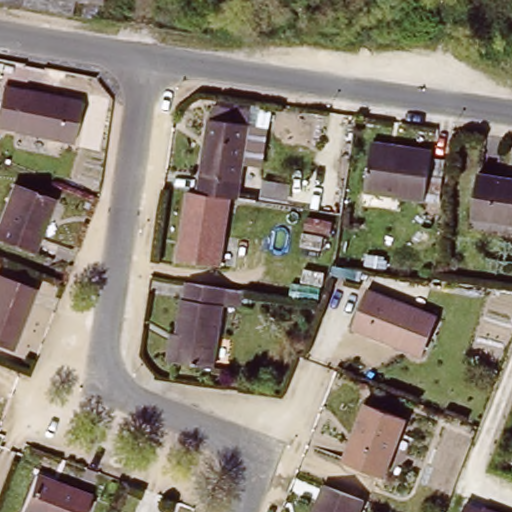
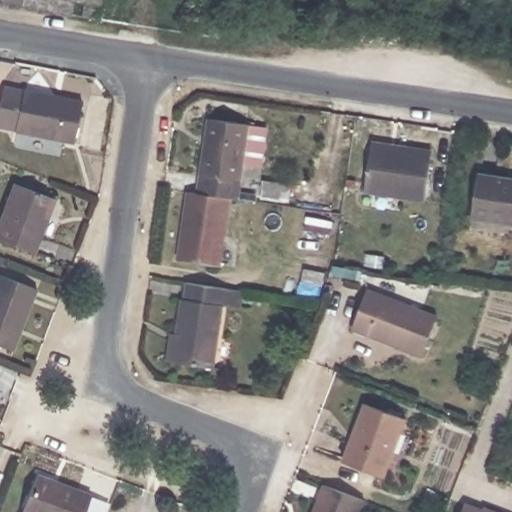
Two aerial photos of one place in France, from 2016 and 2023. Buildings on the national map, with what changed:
unchanged [(0,1),(0,0),(72,0),(68,14),(0,1)]
unchanged [(77,0),(97,0),(96,4),(77,0)]
unchanged [(78,99),(69,140),(12,129),(20,87),(78,99)]
unchanged [(233,197),(226,195),(193,190),(204,115),(245,122),(233,197)]
unchanged [(364,188),(371,146),(371,141),(402,145),(431,149),(423,197),(364,188)]
unchanged [(512,221),(468,215),(474,173),(512,178),(512,221)]
unchanged [(52,198),(31,251),(0,239),(0,217),(13,183),(52,198)]
unchanged [(215,264),(175,257),(186,189),(193,190),(226,195),(215,264)]
unchanged [(9,348),(0,344),(0,274),(33,287),(9,348)]
unchanged [(174,333),(179,298),(181,298),(184,280),(236,289),(234,304),(219,303),(208,366),(164,359),(167,339),(168,332),(174,333)]
unchanged [(434,315),(419,354),(349,328),(363,289),(434,315)]
unchanged [(403,413),(381,471),(341,455),(363,397),(403,413)]
unchanged [(86,493),(79,512),(17,512),(32,472),(86,493)]
unchanged [(362,499),(357,512),(311,512),(322,483),(362,499)]
unchanged [(463,501),(476,506),(483,508),(481,512),(459,512),(463,501)]

